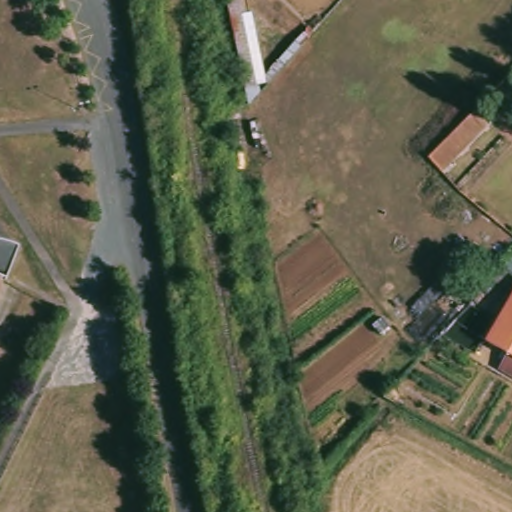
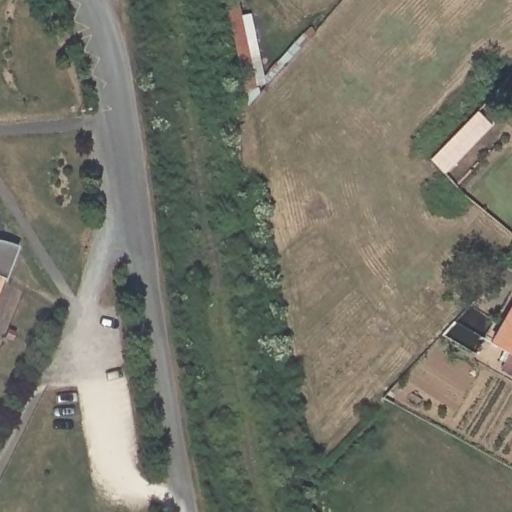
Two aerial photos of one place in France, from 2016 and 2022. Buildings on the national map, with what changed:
unchanged [(250,12),(266,80),(259,82),(261,94),(248,105),(225,0),(238,0),(242,16),(250,12)]
unchanged [(499,123),(462,160),(459,157),(448,168),(435,154),(481,106),(499,123)]
unchanged [(4,282),(1,281),(0,284),(0,242),(19,246),(4,282)]
unchanged [(501,370),(510,355),(491,343),(512,307),(512,375),(501,370)]

